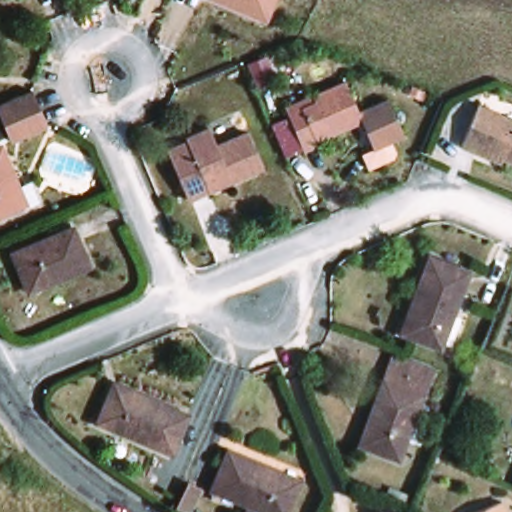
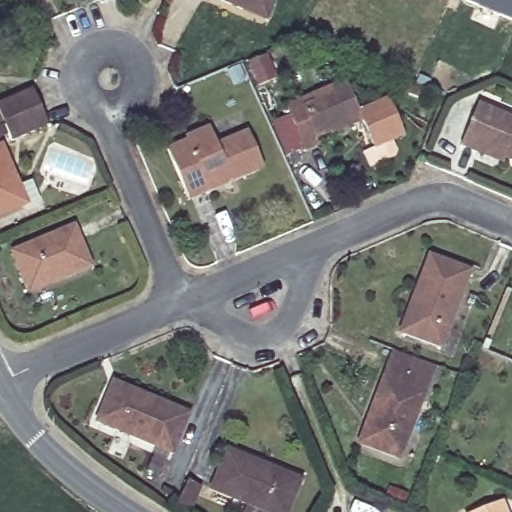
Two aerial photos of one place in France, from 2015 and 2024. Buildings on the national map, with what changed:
unchanged [(269,14),(234,0),(276,0),(269,14)]
new [(468,0),(512,0),(512,20),(467,2),(468,0)]
unchanged [(271,95),(260,71),(279,64),(289,86),(271,95)]
unchanged [(309,144),(300,119),(297,110),(294,100),(324,90),(356,78),(367,107),(397,96),(411,134),(389,142),(394,157),(374,164),(369,149),(381,145),(370,117),(342,127),(340,123),(323,130),(325,138),(309,144)]
unchanged [(12,118),(4,121),(0,109),(0,104),(5,101),(44,87),(50,100),(60,121),(20,139),(12,118)]
unchanged [(494,145),(490,150),(473,144),(488,102),(512,112),(512,153),(494,145)]
unchanged [(277,169),(199,197),(180,152),(199,145),(198,140),(222,130),(229,145),(261,132),(277,169)]
unchanged [(24,184),(39,178),(48,199),(29,206),(28,202),(0,214),(0,147),(8,145),(24,184)]
unchanged [(101,266),(43,287),(25,246),(86,221),(101,266)]
unchanged [(454,347),(414,333),(441,255),(484,271),(454,347)]
unchanged [(369,432),(395,370),(399,360),(439,376),(436,385),(413,449),(369,432)]
unchanged [(201,410),(183,453),(105,422),(123,378),(201,410)]
unchanged [(299,512),(288,512),(223,484),(239,447),(315,477),(299,512)]
unchanged [(481,512),(512,499),(512,500),(512,512),(481,512)]

